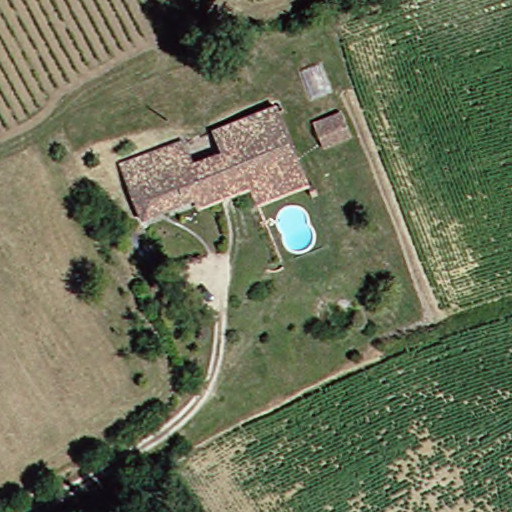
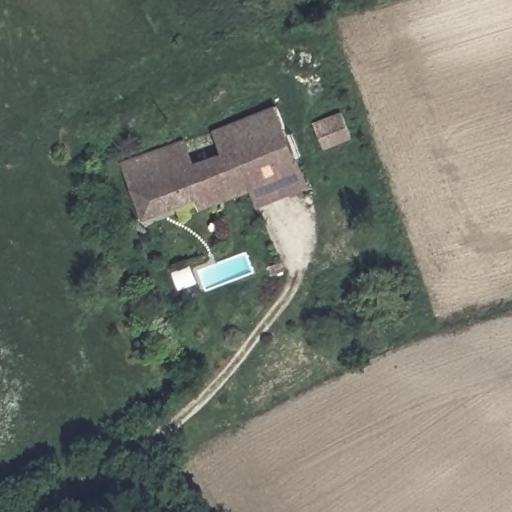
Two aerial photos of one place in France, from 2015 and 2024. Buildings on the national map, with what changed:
unchanged [(184,203),(130,223),(111,169),(180,143),(190,170),(217,161),(208,137),(271,114),(289,165),(184,203)]
unchanged [(341,114),(350,138),(323,148),(313,125),(341,114)]
unchanged [(300,193),(244,210),(238,199),(189,217),(184,203),(289,165),(300,193)]

